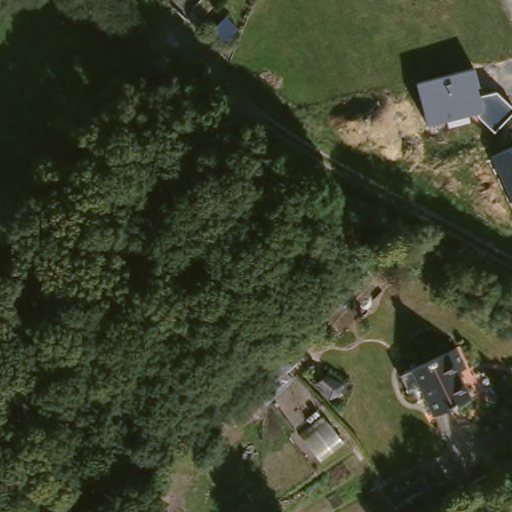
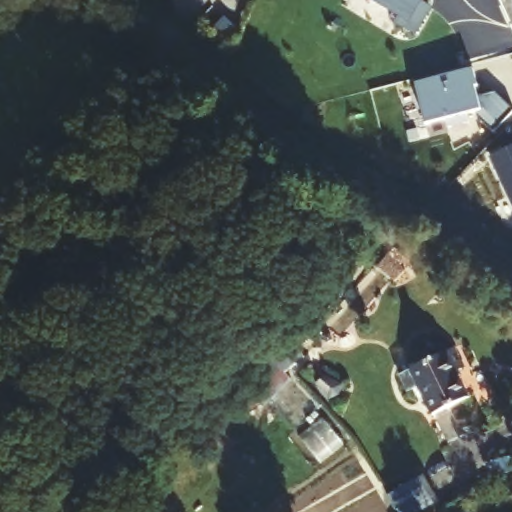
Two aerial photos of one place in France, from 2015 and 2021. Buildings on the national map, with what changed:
new [(426,6),(410,31),(392,20),(396,14),(375,0),(417,0),(426,6)]
unchanged [(478,97),(495,94),(512,109),(512,114),(493,132),(478,118),(477,113),(468,115),(469,122),(447,129),(445,120),(425,125),(414,84),(470,70),(478,97)]
unchanged [(512,203),(490,157),(512,147),(512,203)]
unchanged [(433,416),(411,371),(446,353),(469,399),(433,416)]
unchanged [(433,512),(393,512),(382,496),(417,477),(436,510),(433,512)]

